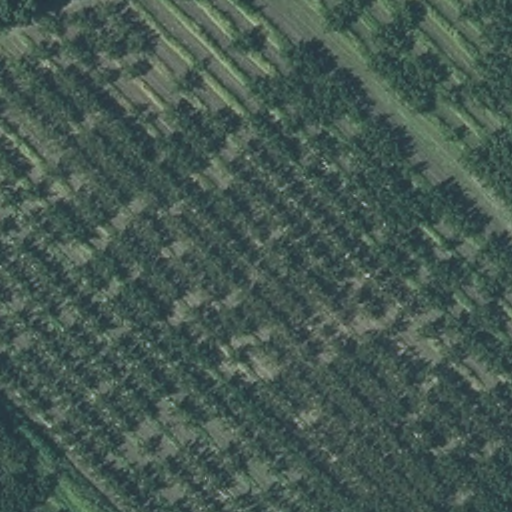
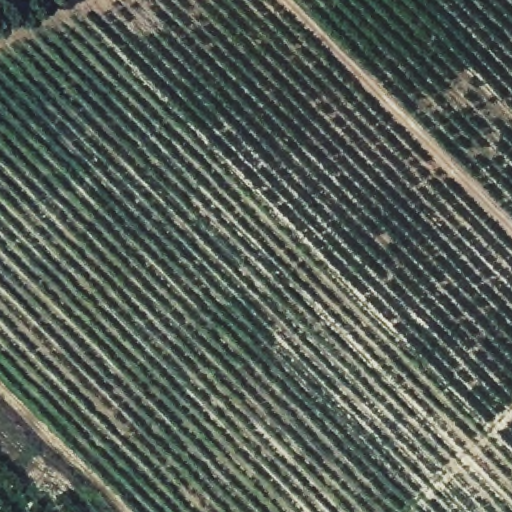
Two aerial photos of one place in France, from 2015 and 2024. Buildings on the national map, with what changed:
[]

